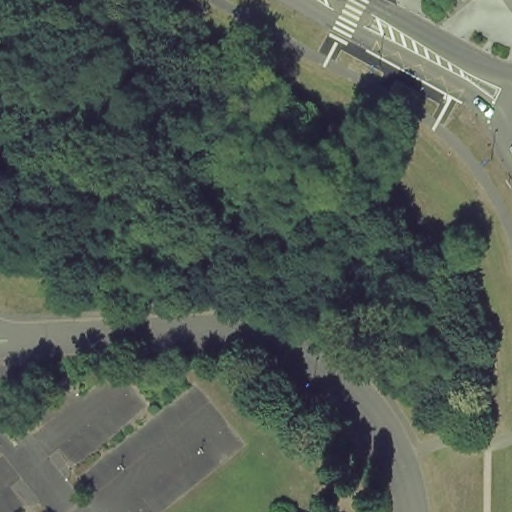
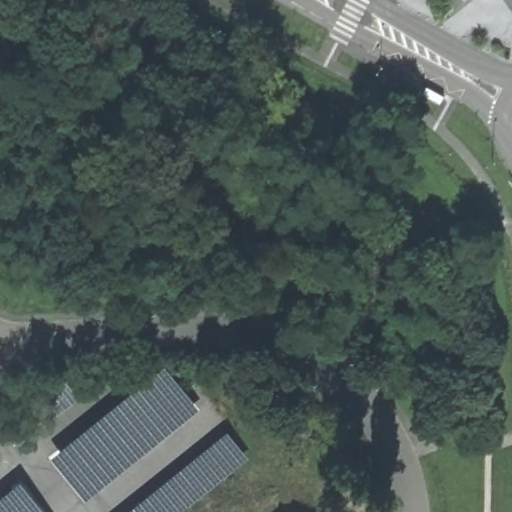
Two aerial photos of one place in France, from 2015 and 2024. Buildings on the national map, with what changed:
new [(164,367),(199,410),(85,502),(50,458),(164,367)]
new [(61,377),(78,398),(44,425),(28,402),(61,377)]
new [(226,432),(248,458),(181,512),(128,512),(226,432)]
new [(0,500),(20,482),(42,512),(0,512),(0,500)]

